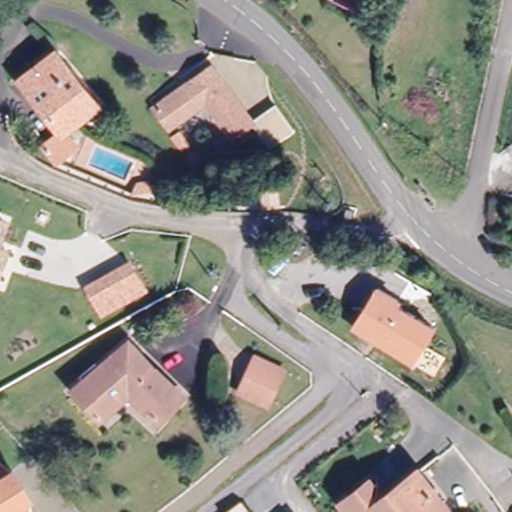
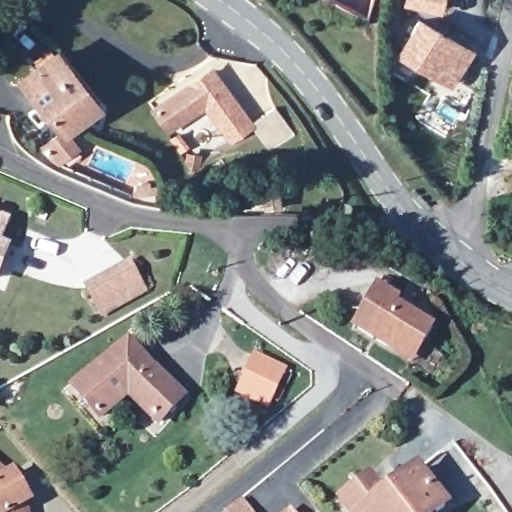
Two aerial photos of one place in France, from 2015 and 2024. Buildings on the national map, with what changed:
new [(476,49),(453,88),(395,55),(419,16),(476,49)]
unchanged [(58,50),(95,104),(60,128),(22,74),(58,50)]
unchanged [(224,141),(200,103),(161,127),(150,108),(207,72),(243,127),(224,141)]
unchanged [(269,111),(287,139),(262,155),(243,127),(269,111)]
unchanged [(37,144),(60,128),(71,145),(49,161),(37,144)]
unchanged [(136,191),(148,189),(149,202),(138,204),(136,191)]
unchanged [(1,247),(10,252),(0,276),(0,220),(10,224),(1,247)]
unchanged [(131,260),(148,293),(103,320),(85,286),(131,260)]
unchanged [(398,356),(356,331),(379,292),(400,303),(397,307),(435,330),(424,350),(415,366),(398,356)]
unchanged [(105,417),(75,391),(123,344),(181,394),(158,417),(127,393),(105,417)]
unchanged [(237,391),(257,357),(283,372),(263,406),(237,391)]
unchanged [(13,467),(23,483),(29,492),(25,496),(29,512),(0,512),(0,466),(8,471),(13,467)]
unchanged [(419,468),(446,503),(434,512),(352,512),(345,502),(368,482),(382,497),(419,468)]

